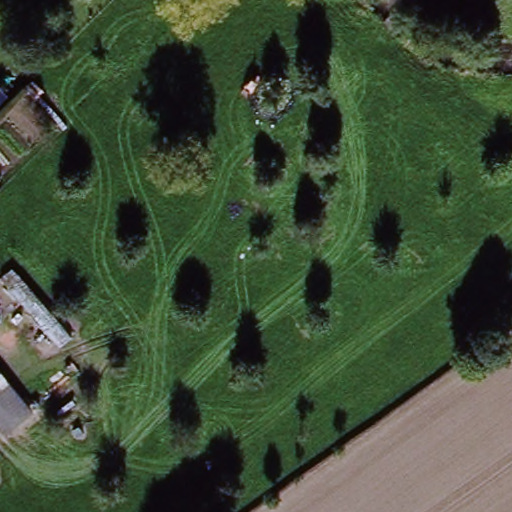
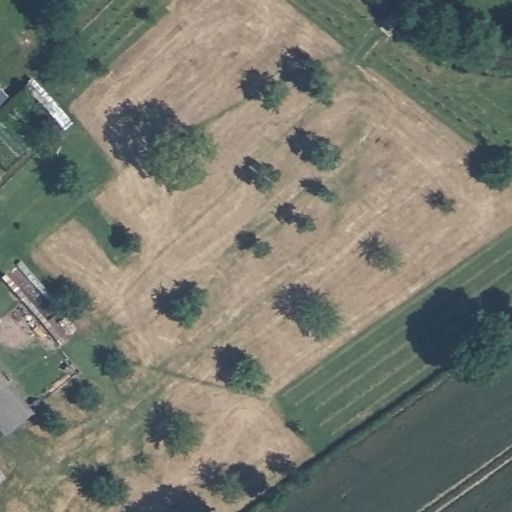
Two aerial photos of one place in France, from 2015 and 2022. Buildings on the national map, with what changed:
unchanged [(0,104),(0,85),(10,95),(0,104)]
unchanged [(0,395),(0,369),(11,385),(0,395)]
unchanged [(32,411),(6,433),(0,424),(0,395),(11,385),(32,411)]

